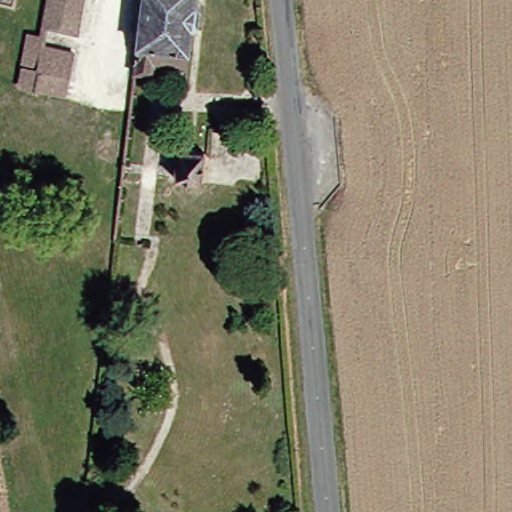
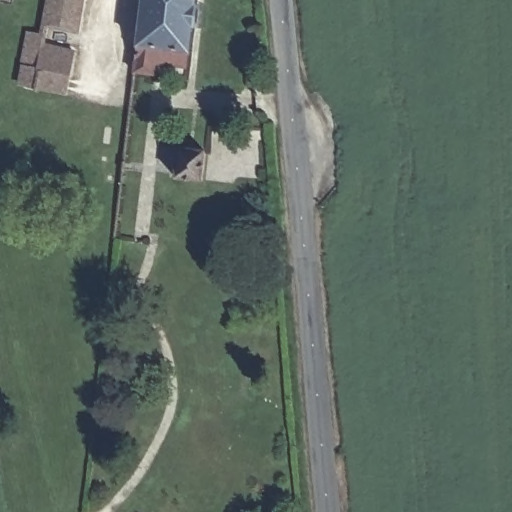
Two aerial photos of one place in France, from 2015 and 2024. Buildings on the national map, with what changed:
unchanged [(32,32),(37,0),(73,0),(68,36),(32,32)]
unchanged [(152,59),(125,54),(134,0),(189,0),(188,3),(192,4),(190,22),(185,22),(182,51),(179,64),(152,59)]
unchanged [(11,92),(13,78),(19,42),(34,43),(34,52),(65,57),(62,84),(59,97),(11,92)]

